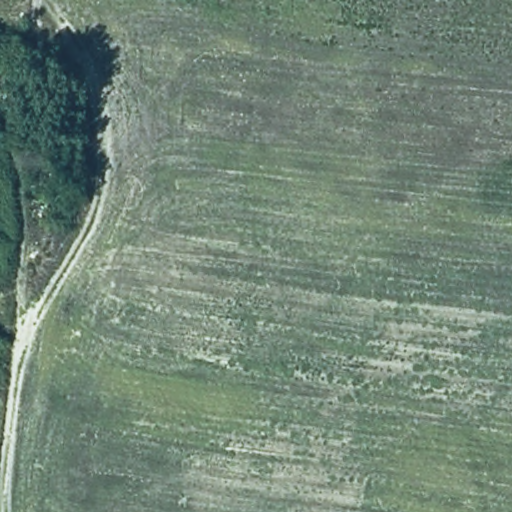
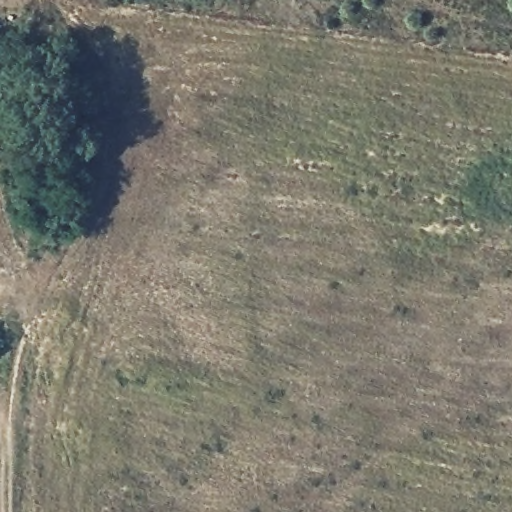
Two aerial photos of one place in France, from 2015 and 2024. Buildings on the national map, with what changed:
unchanged [(55,168),(54,190),(46,190),(45,214),(30,213),(32,166),(55,168)]

